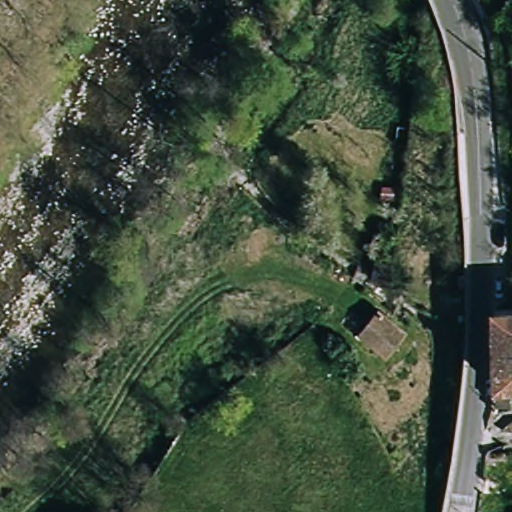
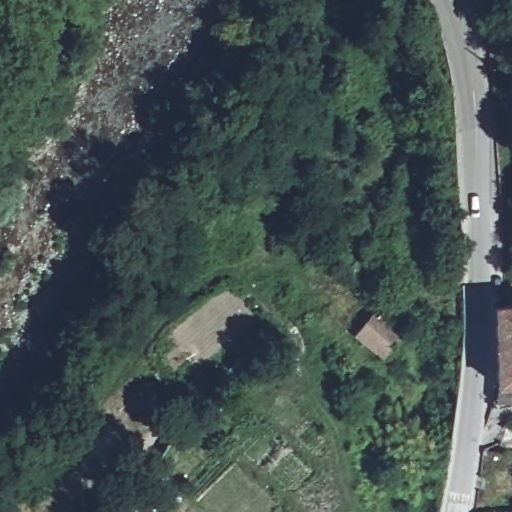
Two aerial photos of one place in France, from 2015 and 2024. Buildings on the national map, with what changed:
unchanged [(498,305),(508,305),(512,304),(512,400),(502,401),(501,383),(498,305)]
unchanged [(352,330),(370,306),(398,329),(380,353),(352,330)]

